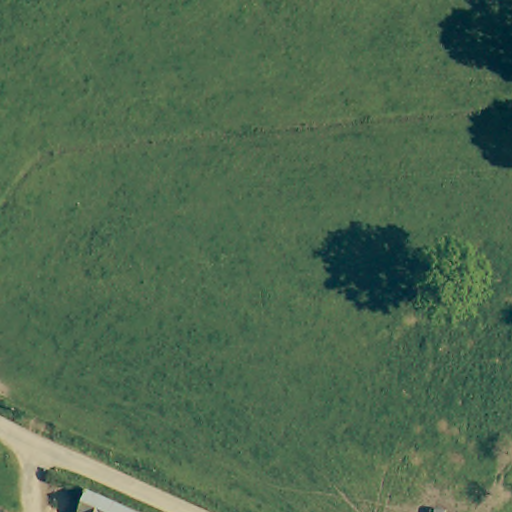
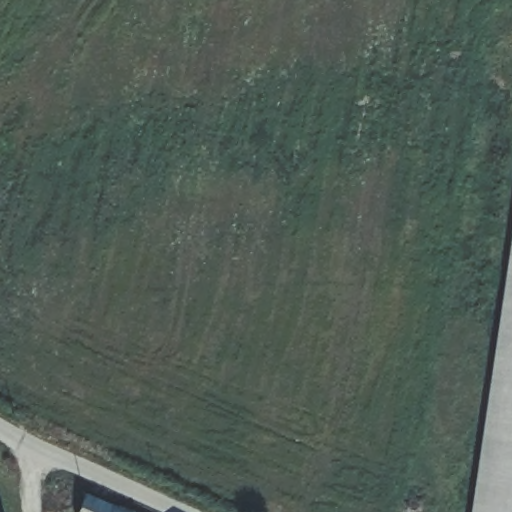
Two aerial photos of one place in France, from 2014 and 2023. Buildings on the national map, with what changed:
new [(512,230),(512,512),(470,512),(512,230)]
unchanged [(134,512),(76,512),(84,488),(134,512)]

